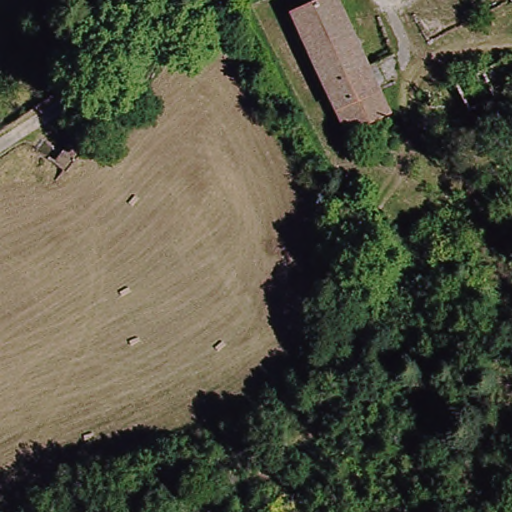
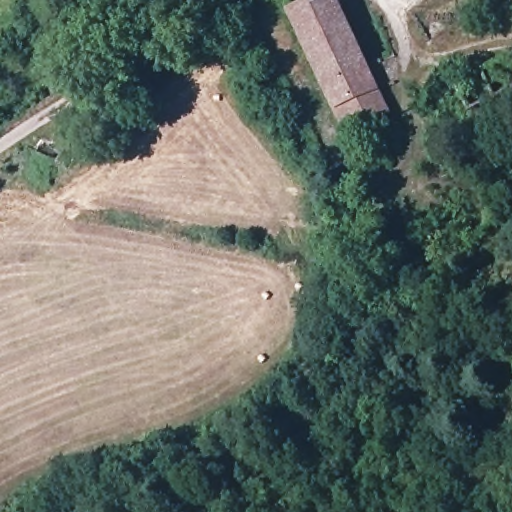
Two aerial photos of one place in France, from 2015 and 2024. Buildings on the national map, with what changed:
unchanged [(280,19),(315,0),(336,0),(337,2),(330,6),(375,83),(390,108),(374,117),(347,134),(280,19)]
unchanged [(73,158),(60,175),(48,165),(64,150),(73,158)]

